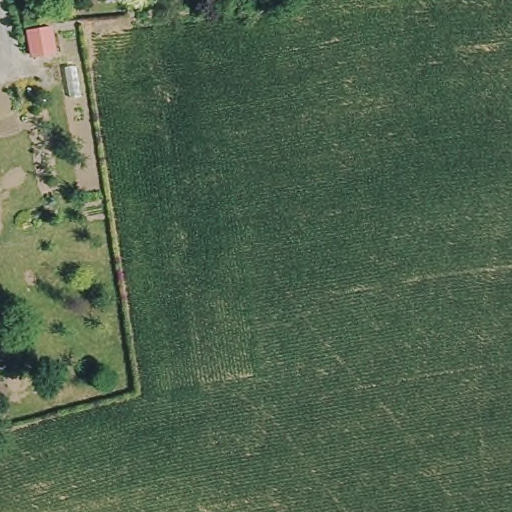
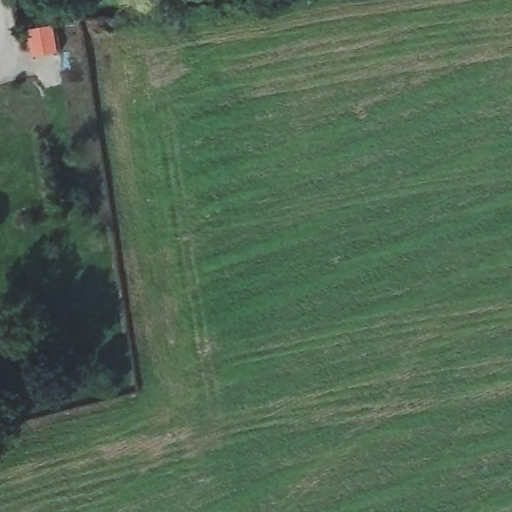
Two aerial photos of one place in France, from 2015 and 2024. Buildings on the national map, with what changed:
[]

